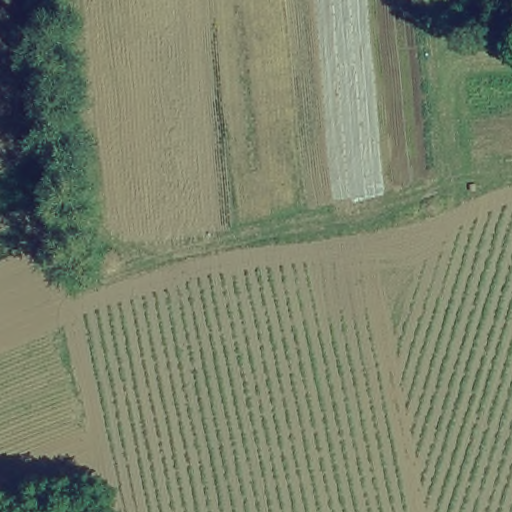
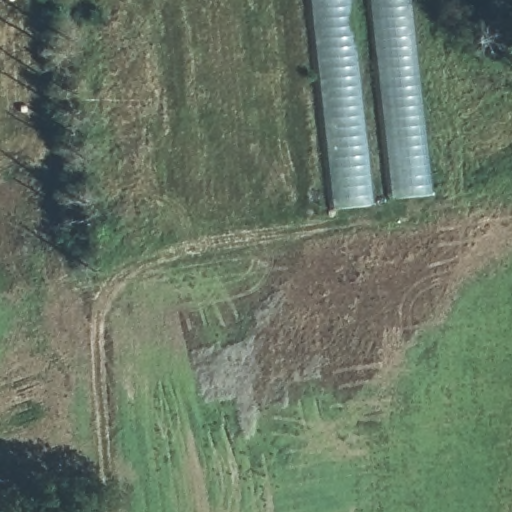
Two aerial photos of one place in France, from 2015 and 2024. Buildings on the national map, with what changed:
new [(428,194),(331,208),(309,0),(406,0),(428,194)]

